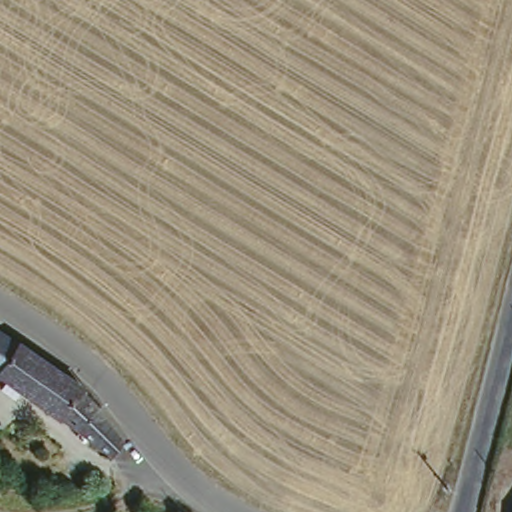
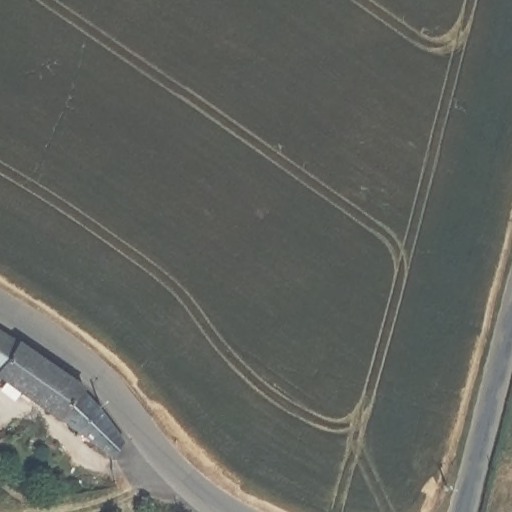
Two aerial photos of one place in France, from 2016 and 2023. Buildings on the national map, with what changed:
unchanged [(76,428),(0,375),(0,332),(16,342),(37,359),(70,386),(99,416),(118,434),(122,440),(112,454),(76,428)]

